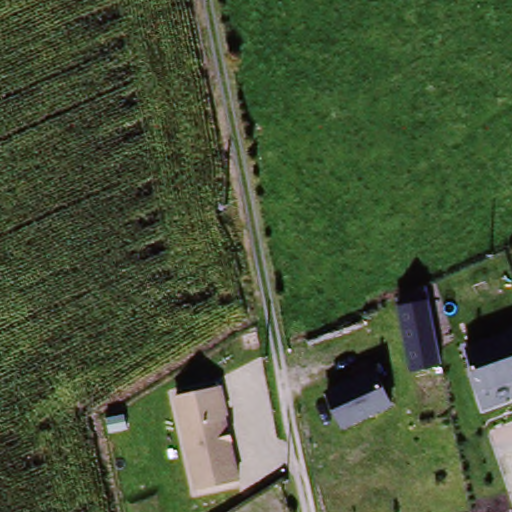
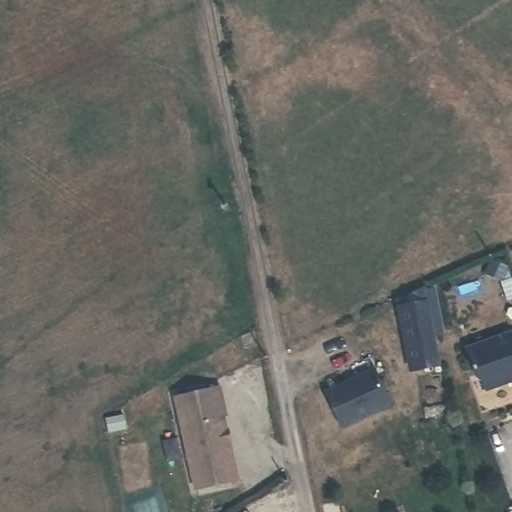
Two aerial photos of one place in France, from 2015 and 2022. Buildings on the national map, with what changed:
unchanged [(424,289),(440,367),(407,374),(390,298),(424,289)]
unchanged [(512,333),(512,384),(479,395),(463,350),(512,333)]
unchanged [(331,395),(380,372),(395,407),(347,430),(331,395)]
unchanged [(220,387),(240,482),(193,494),(172,400),(220,387)]

